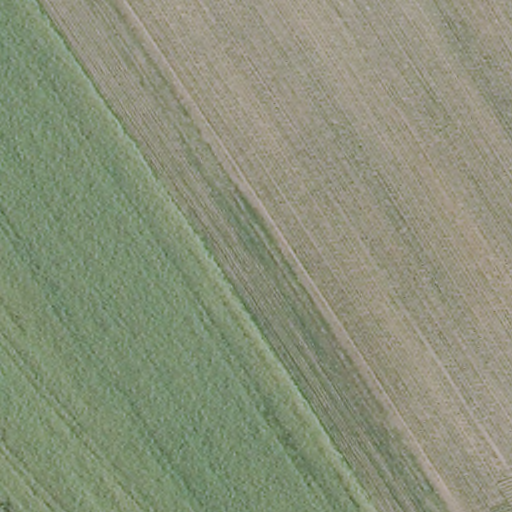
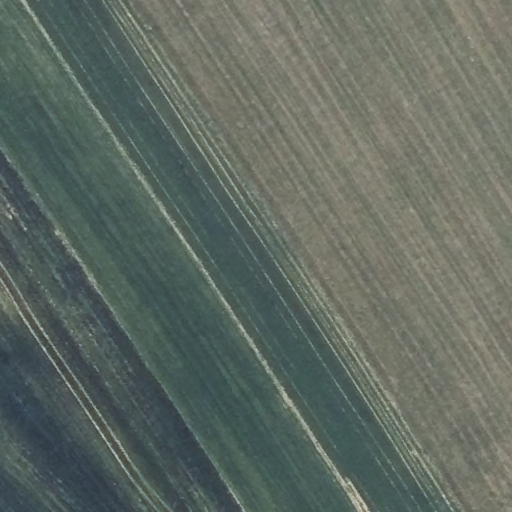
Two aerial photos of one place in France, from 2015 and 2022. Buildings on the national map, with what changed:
[]

